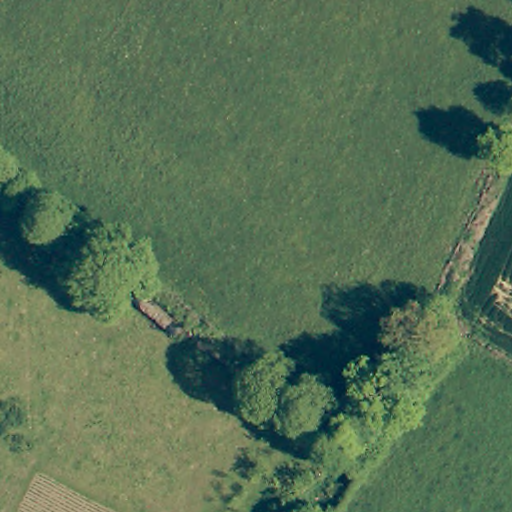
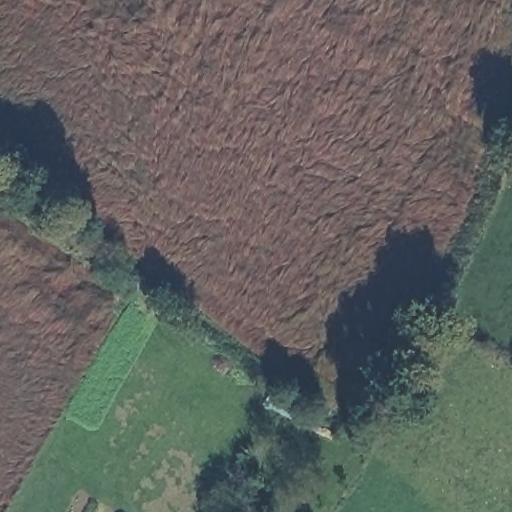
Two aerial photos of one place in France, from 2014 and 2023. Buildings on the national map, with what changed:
[]

